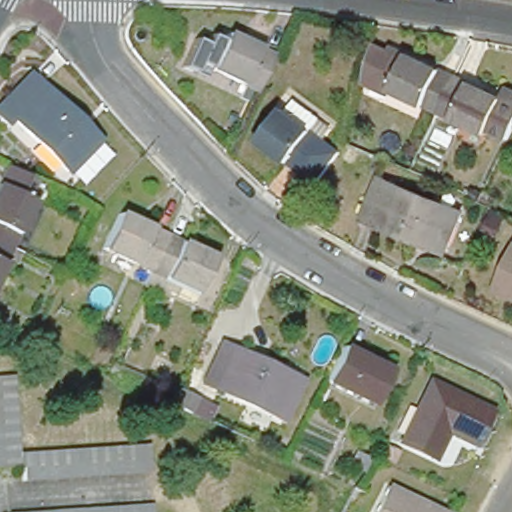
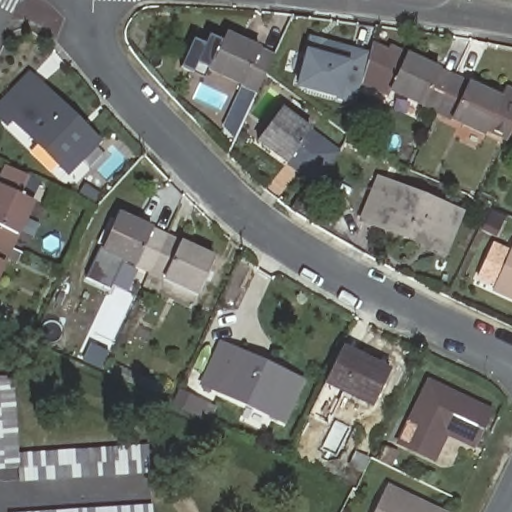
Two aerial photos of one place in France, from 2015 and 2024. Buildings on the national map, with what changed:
unchanged [(207,70),(225,34),(272,56),(255,92),(207,70)]
new [(359,101),(301,84),(313,37),(372,54),(364,84),(359,101)]
unchanged [(391,55),(395,49),(456,78),(456,79),(440,112),(395,90),(392,96),(364,84),(374,47),(391,55)]
unchanged [(97,141),(68,171),(12,118),(6,122),(0,117),(0,105),(30,74),(97,141)]
unchanged [(456,79),(503,101),(509,89),(512,91),(512,136),(510,141),(490,133),(488,136),(439,113),(440,112),(456,79)]
unchanged [(327,141),(303,172),(262,139),(285,109),(327,141)]
unchanged [(18,201),(31,207),(10,252),(0,248),(0,180),(5,169),(28,180),(18,201)]
unchanged [(459,212),(442,254),(361,220),(377,179),(459,212)]
unchanged [(101,250),(118,214),(164,234),(148,271),(101,250)]
unchanged [(164,234),(214,257),(197,293),(148,271),(164,234)]
unchanged [(492,289),(512,245),(512,246),(512,298),(492,289)]
unchanged [(0,248),(10,252),(0,274),(0,248)]
unchanged [(301,381),(282,420),(201,384),(220,344),(301,381)]
unchanged [(342,347),(389,369),(371,406),(324,385),(342,347)]
unchanged [(20,465),(0,466),(0,376),(15,374),(20,448),(20,453),(151,445),(154,472),(21,481),(20,465)]
unchanged [(491,416),(475,448),(455,439),(442,464),(403,446),(432,388),(491,416)]
unchanged [(350,463),(356,450),(368,456),(368,457),(362,469),(350,463)]
unchanged [(444,512),(381,512),(393,488),(444,512)]
unchanged [(156,509),(156,512),(105,512),(156,508),(156,509)]

